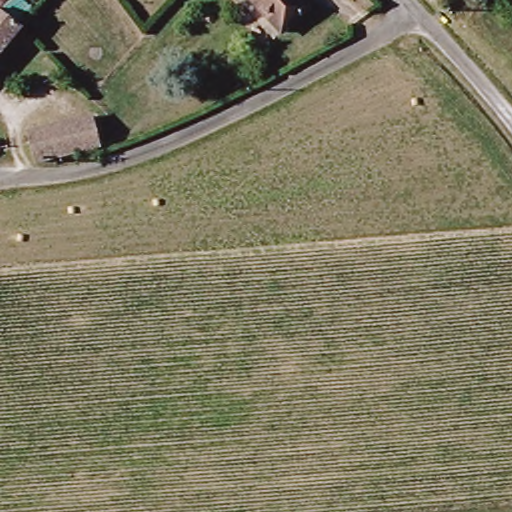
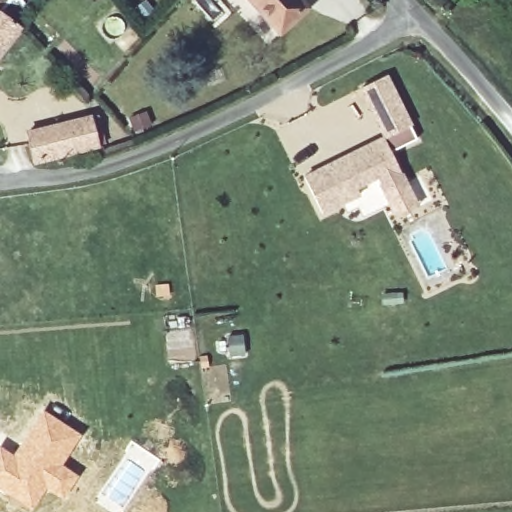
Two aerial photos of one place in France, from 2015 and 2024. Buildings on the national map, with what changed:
unchanged [(245,0),(294,0),(299,5),(271,29),(245,0)]
unchanged [(0,47),(0,14),(15,27),(0,47)]
new [(360,91),(389,78),(418,140),(391,155),(417,212),(397,224),(376,181),(358,190),(361,197),(325,215),(305,176),(383,137),(360,91)]
unchanged [(97,147),(51,161),(31,161),(25,131),(92,117),(97,147)]
new [(43,409),(83,434),(64,464),(80,475),(63,501),(47,492),(34,512),(0,490),(0,445),(12,452),(43,409)]

